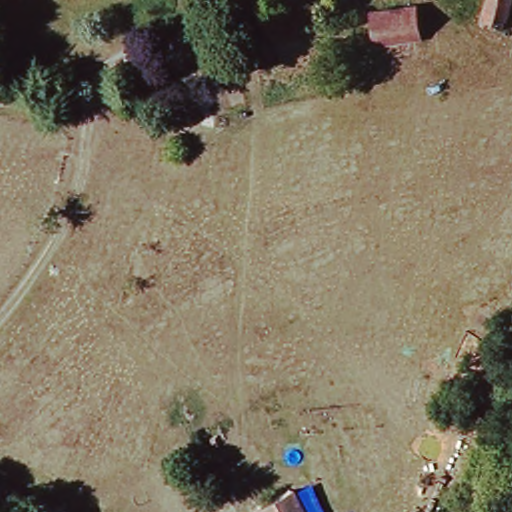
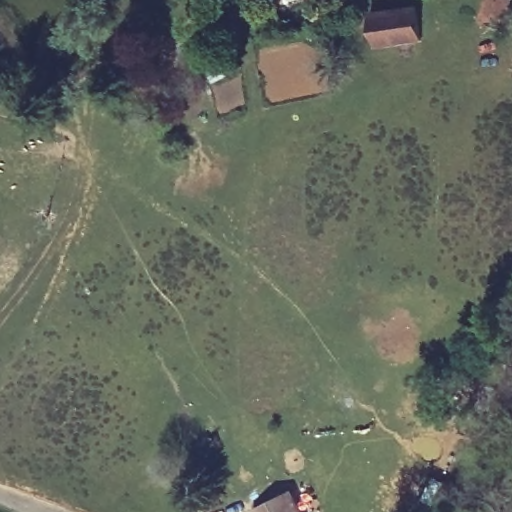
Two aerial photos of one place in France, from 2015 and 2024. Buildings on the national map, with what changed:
unchanged [(245,2),(244,0),(253,0),(245,2)]
unchanged [(355,11),(350,12),(350,15),(340,17),(336,0),(353,0),(355,11)]
unchanged [(488,0),(511,0),(504,30),(481,24),(488,0)]
unchanged [(415,5),(420,37),(416,37),(417,52),(400,55),(397,40),(374,44),(369,12),(415,5)]
unchanged [(254,36),(246,20),(278,6),(285,22),(254,36)]
unchanged [(210,78),(202,56),(229,46),(237,68),(210,78)]
unchanged [(299,512),(254,512),(287,492),(299,512)]

